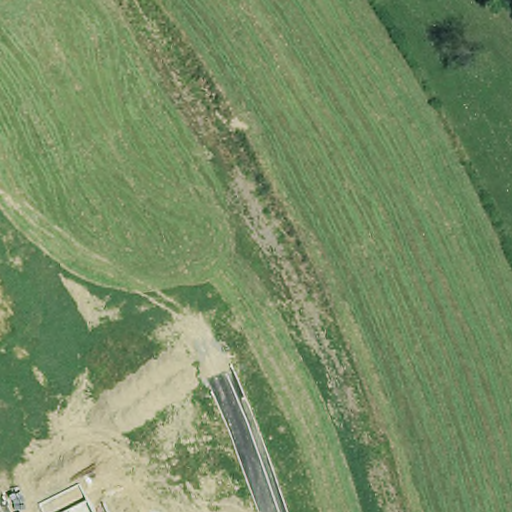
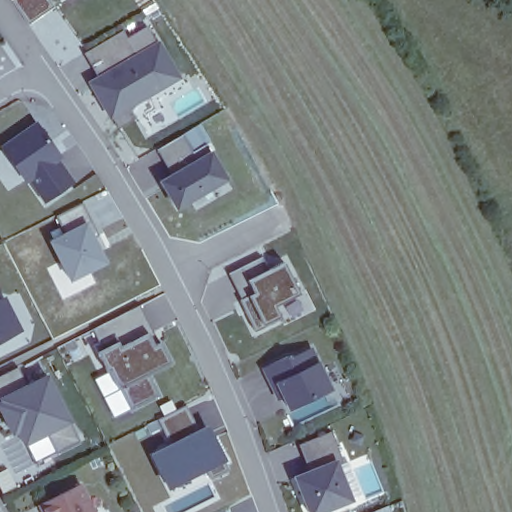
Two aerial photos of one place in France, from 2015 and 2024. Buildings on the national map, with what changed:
new [(28,24),(12,0),(47,0),(52,7),(28,24)]
new [(129,108),(135,117),(116,128),(88,82),(97,76),(83,54),(123,30),(127,37),(146,25),(156,41),(160,39),(182,77),(129,108)]
new [(30,183),(26,187),(0,151),(0,147),(37,122),(62,157),(80,147),(95,176),(74,187),(43,202),(30,183)]
new [(175,211),(158,181),(171,173),(157,150),(182,135),(192,152),(203,145),(207,153),(212,150),(228,178),(175,211)]
new [(55,225),(52,219),(78,203),(108,261),(68,282),(45,239),(48,237),(45,231),(55,225)]
new [(283,263),(296,294),(273,306),(278,316),(262,322),(250,298),(255,295),(247,282),(283,263)]
new [(1,298),(0,299),(0,296),(1,298)]
new [(4,297),(20,329),(0,340),(0,299),(4,297)]
new [(170,366),(147,374),(160,398),(131,410),(110,370),(106,373),(97,354),(117,345),(120,351),(146,337),(153,348),(160,344),(170,366)]
unchanged [(273,385),(272,385),(264,367),(288,355),(290,358),(312,347),(331,388),(290,408),(284,396),(280,398),(273,385)]
new [(56,452),(47,434),(24,446),(17,431),(12,434),(0,412),(0,376),(15,368),(23,385),(47,372),(72,422),(70,422),(78,441),(56,452)]
new [(149,455),(207,427),(225,464),(165,493),(149,455)]
new [(300,444),(332,431),(343,458),(336,461),(336,460),(315,469),(310,470),(300,444)]
new [(336,460),(351,498),(318,512),(310,512),(296,476),(336,460)]
unchanged [(93,512),(44,512),(40,504),(81,484),(93,512)]

